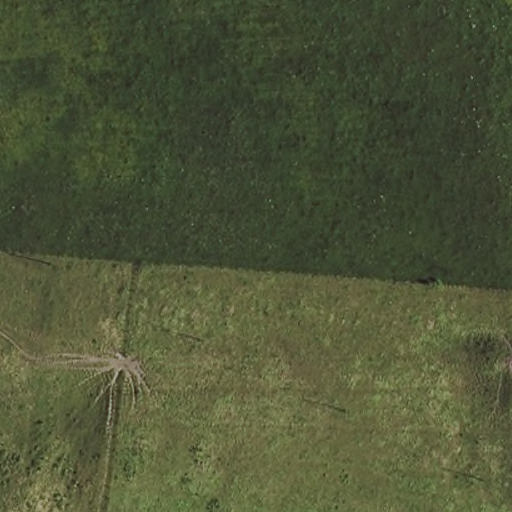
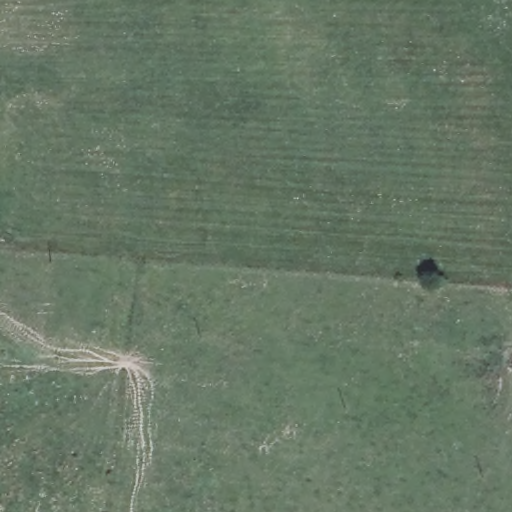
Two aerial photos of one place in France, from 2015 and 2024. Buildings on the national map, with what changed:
[]

